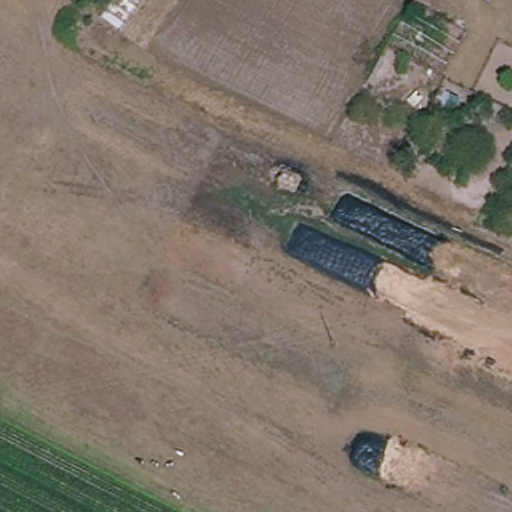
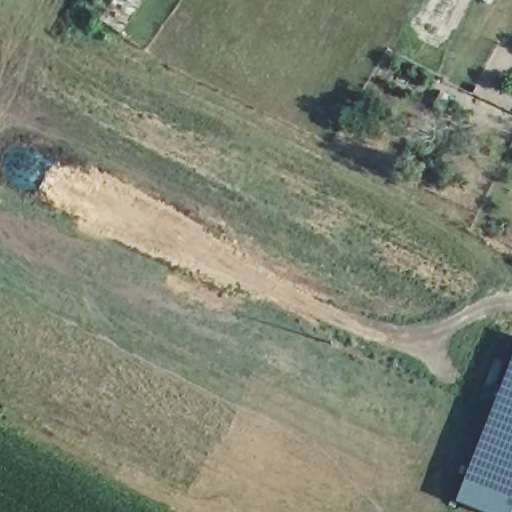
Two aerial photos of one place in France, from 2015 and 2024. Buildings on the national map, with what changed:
new [(504,355),(512,357),(512,512),(454,512),(504,355)]

